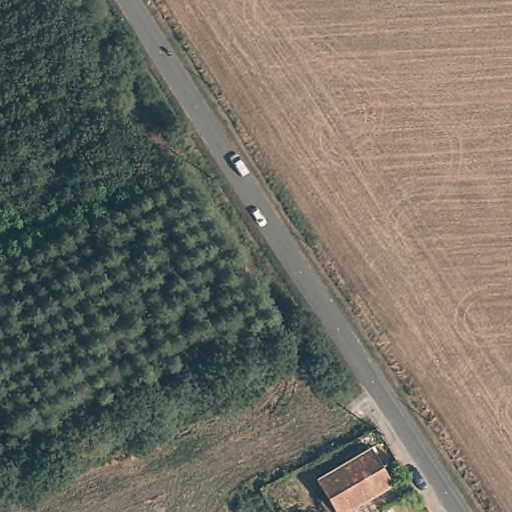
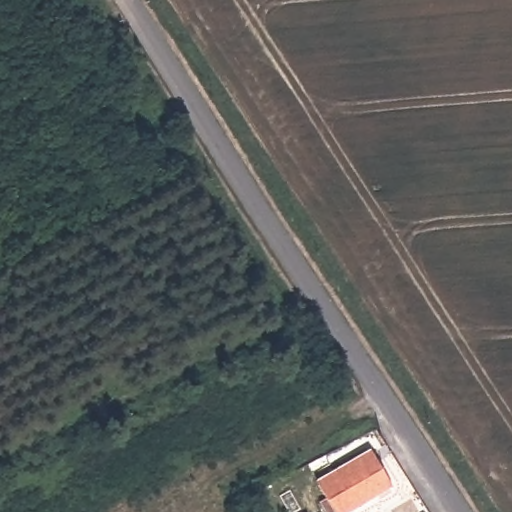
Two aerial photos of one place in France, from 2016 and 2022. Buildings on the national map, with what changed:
unchanged [(398,478),(348,507),(323,470),(375,441),(398,478)]
unchanged [(313,508),(314,512),(301,512),(313,508)]

